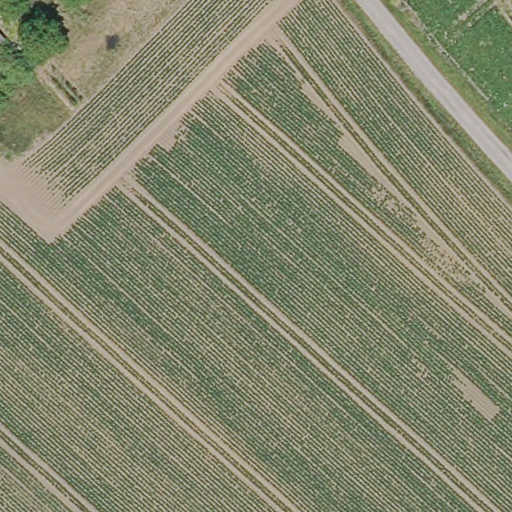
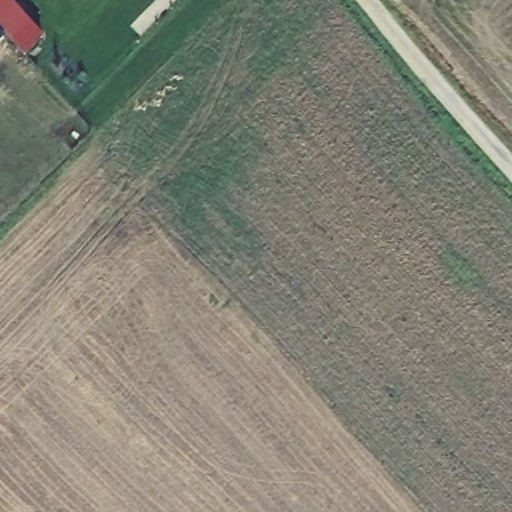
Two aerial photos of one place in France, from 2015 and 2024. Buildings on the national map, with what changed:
new [(25,54),(7,34),(0,40),(0,0),(12,0),(43,35),(25,54)]
demolished [(8,37),(0,44),(0,27),(8,37)]

